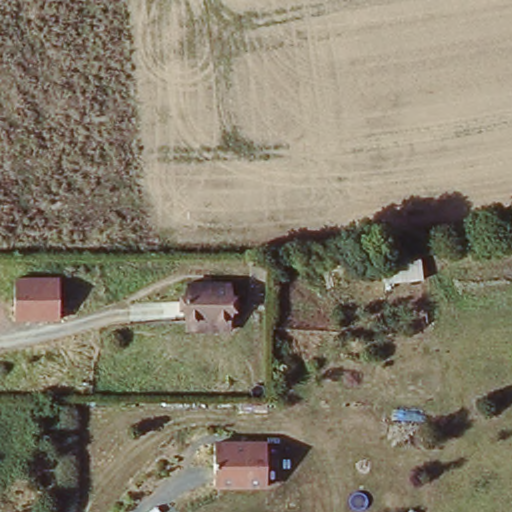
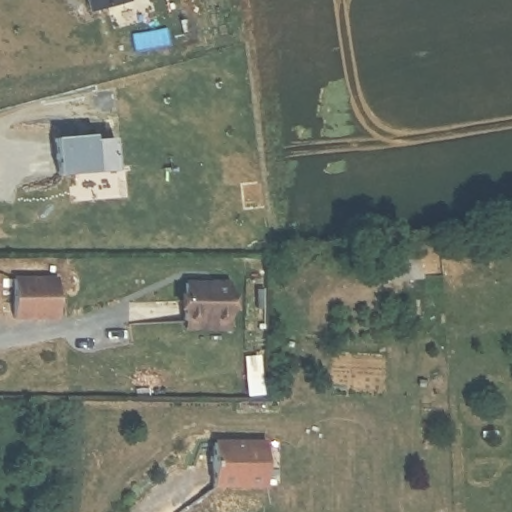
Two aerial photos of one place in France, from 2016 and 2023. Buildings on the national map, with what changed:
new [(86,0),(130,0),(131,5),(89,12),(86,0)]
new [(94,136),(95,142),(114,141),(118,174),(57,178),(56,139),(94,136)]
unchanged [(58,281),(59,320),(15,320),(15,278),(58,281)]
unchanged [(188,333),(188,322),(187,285),(234,286),(234,324),(233,335),(188,333)]
unchanged [(211,486),(213,443),(265,444),(264,487),(211,486)]

